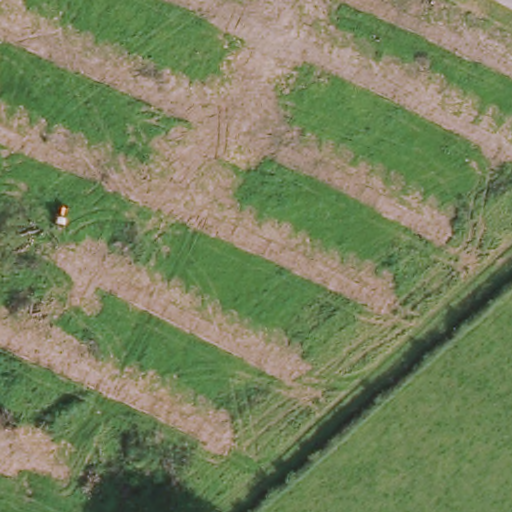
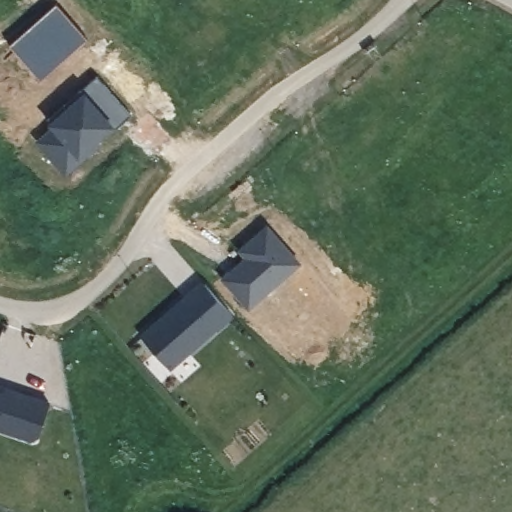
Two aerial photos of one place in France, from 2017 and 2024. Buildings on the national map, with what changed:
demolished [(191,5),(187,0),(195,0),(191,5)]
demolished [(359,31),(332,10),(340,0),(381,0),(359,31)]
new [(42,79),(10,43),(57,2),(88,38),(42,79)]
demolished [(273,61),(238,95),(209,66),(247,31),(273,61)]
new [(114,130),(112,128),(95,143),(99,146),(67,175),(35,141),(50,125),(47,122),(82,88),(97,76),(132,113),(114,130)]
new [(302,262),(250,310),(220,277),(244,257),(235,248),(267,222),(302,262)]
new [(201,280),(232,316),(170,370),(140,334),(201,280)]
new [(0,430),(0,384),(50,401),(36,442),(0,430)]

